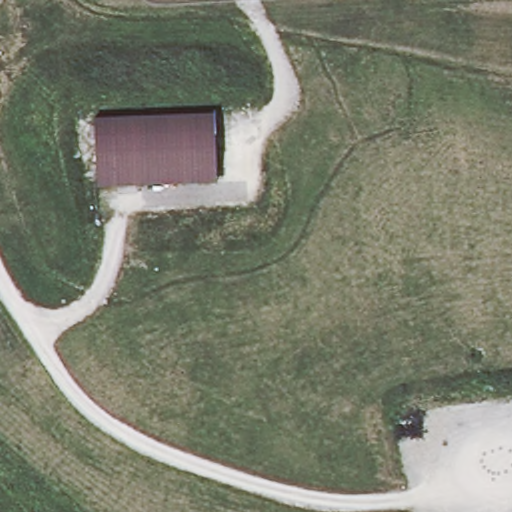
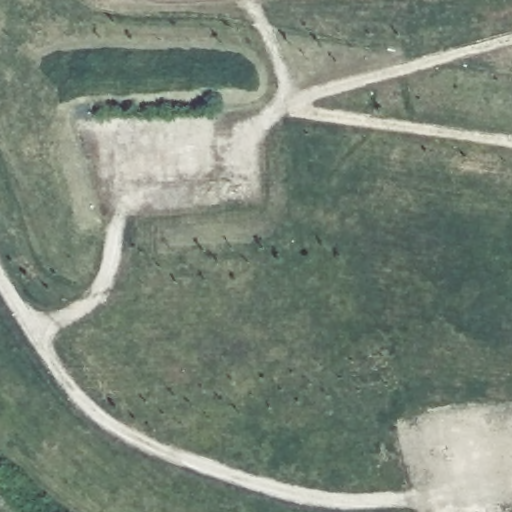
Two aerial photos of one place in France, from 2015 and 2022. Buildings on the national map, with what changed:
demolished [(97,186),(95,118),(215,114),(217,182),(97,186)]

